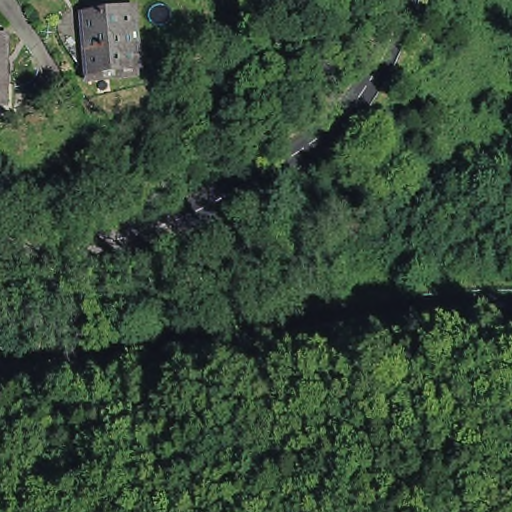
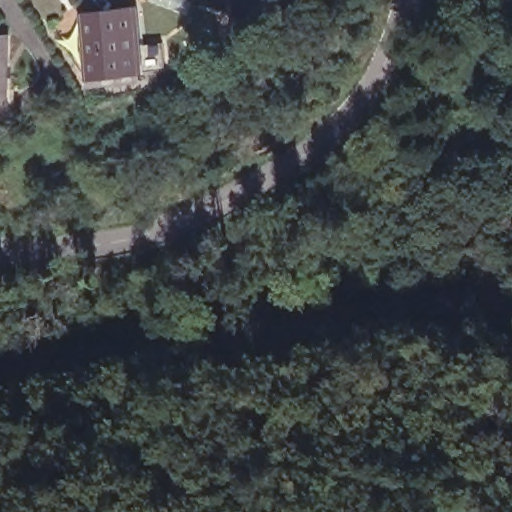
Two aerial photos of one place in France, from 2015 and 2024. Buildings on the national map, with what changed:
unchanged [(145,75),(95,80),(93,71),(86,11),(137,6),(144,66),(145,75)]

